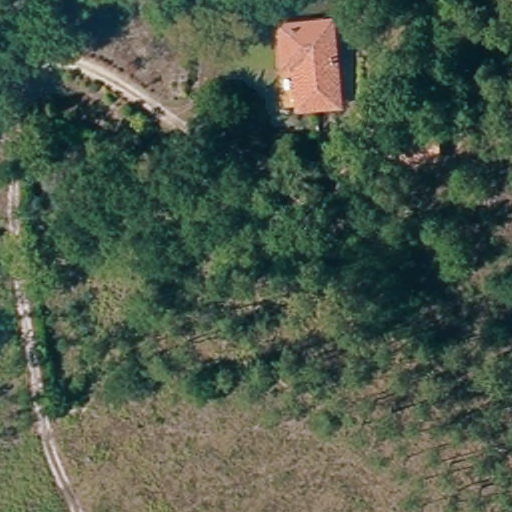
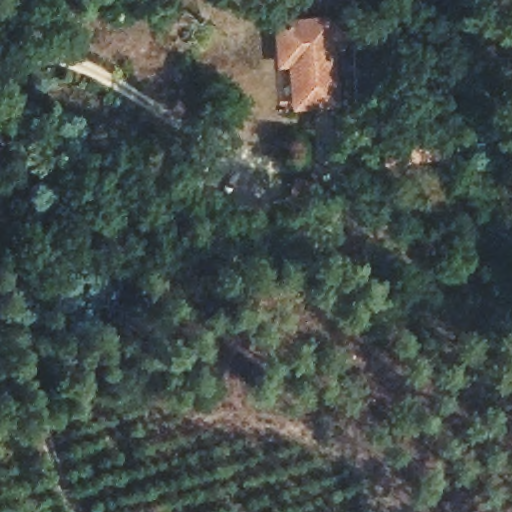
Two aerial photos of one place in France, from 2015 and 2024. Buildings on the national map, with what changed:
unchanged [(279,63),(276,27),(297,26),(326,24),(327,40),(332,107),(293,108),(292,65),(279,63)]
unchanged [(387,142),(398,141),(439,137),(440,159),(402,163),(390,164),(387,142)]
unchanged [(296,191),(318,197),(312,221),(289,215),(296,191)]

